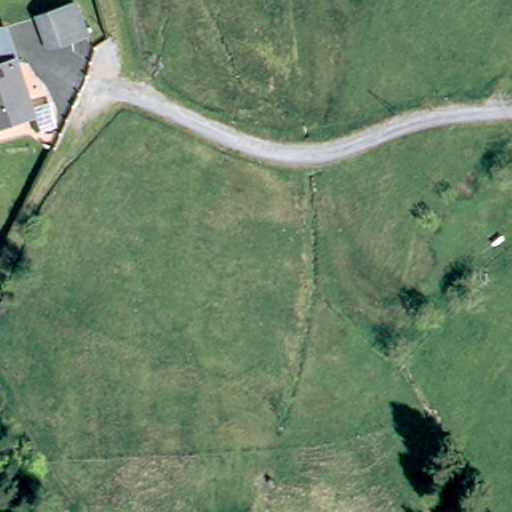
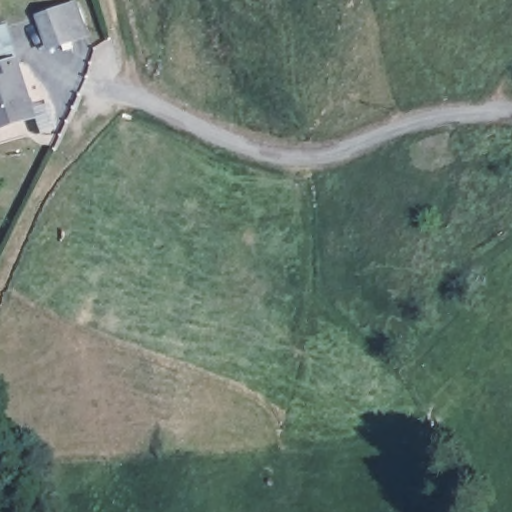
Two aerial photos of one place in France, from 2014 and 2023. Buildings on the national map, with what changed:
unchanged [(44,35),(29,5),(41,0),(54,0),(67,28),(44,35)]
unchanged [(0,114),(0,30),(3,29),(15,56),(35,104),(0,114)]

